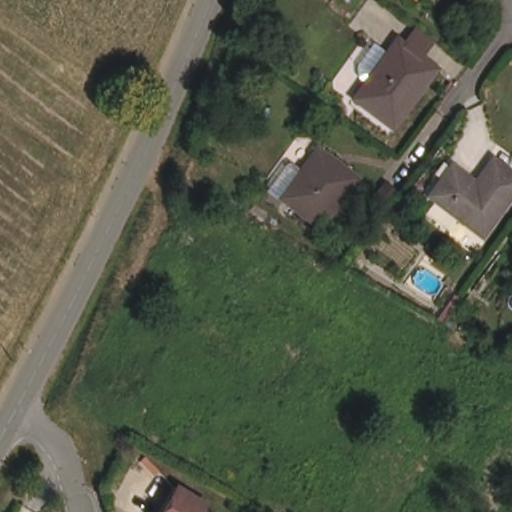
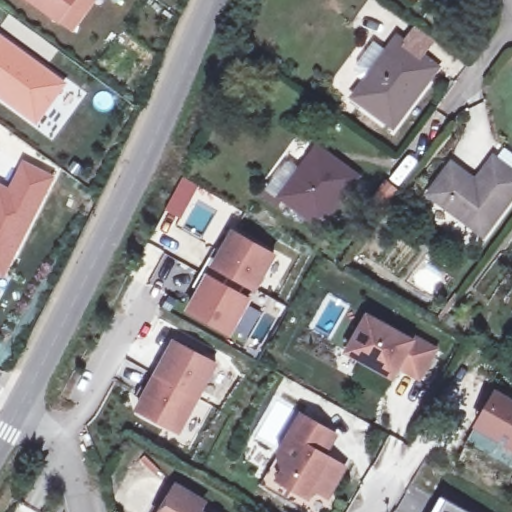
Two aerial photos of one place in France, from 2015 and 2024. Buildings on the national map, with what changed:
new [(59,20),(32,0),(73,0),(59,20)]
unchanged [(400,47),(412,31),(432,45),(419,62),(435,75),(392,134),(354,104),(397,46),(400,47)]
new [(37,121),(0,94),(0,37),(64,84),(37,121)]
unchanged [(272,206),(309,157),(321,141),(361,170),(349,186),(312,235),(272,206)]
new [(0,185),(9,189),(24,163),(55,178),(4,278),(0,276),(0,185)]
unchanged [(512,178),(512,203),(484,242),(433,204),(457,174),(480,190),(497,167),(512,178)]
new [(200,185),(182,218),(167,210),(185,177),(200,185)]
unchanged [(385,222),(370,211),(390,186),(404,197),(385,222)]
new [(214,248),(221,252),(232,233),(272,256),(254,288),(230,275),(224,286),(200,272),(214,248)]
new [(369,316),(413,342),(415,338),(436,350),(420,378),(399,366),(393,377),(348,352),(369,316)]
new [(147,389),(145,387),(170,345),(215,367),(177,431),(137,409),(147,389)]
new [(512,392),(512,446),(481,428),(477,425),(496,392),(500,385),(512,392)]
new [(302,415),(332,432),(337,436),(325,455),(345,467),(329,497),(314,489),(309,498),(280,480),(268,474),(280,454),(302,415)]
unchanged [(202,505),(197,512),(161,512),(174,490),(202,505)]
new [(470,512),(441,512),(448,500),(470,512)]

